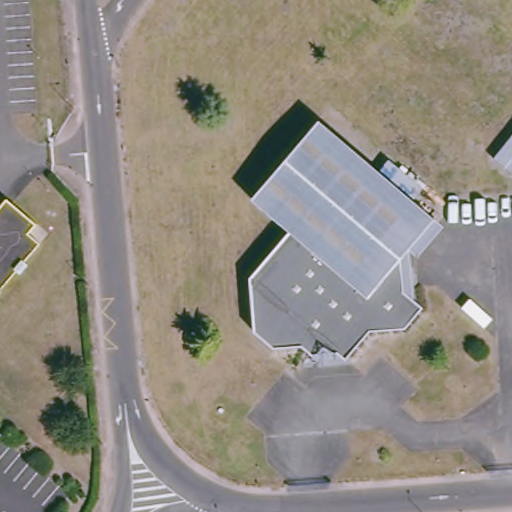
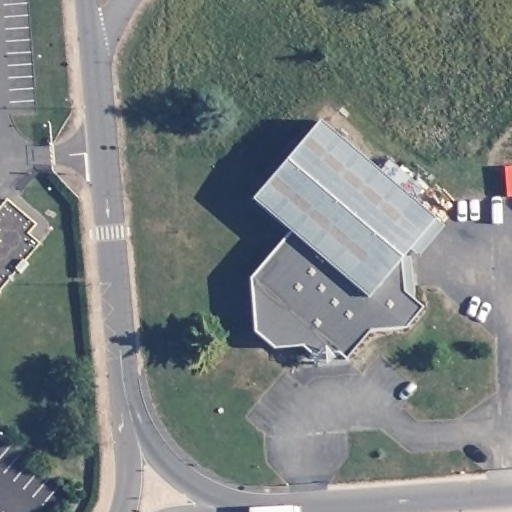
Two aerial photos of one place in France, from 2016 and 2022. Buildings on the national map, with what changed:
unchanged [(375,172),(408,201),(431,220),(398,259),(403,290),(423,310),(406,328),(375,329),(343,364),(328,353),(305,356),(294,346),(270,348),(248,332),(244,283),(286,233),(248,199),(315,122),(375,172)]
unchanged [(512,140),(512,174),(497,161),(512,140)]
unchanged [(15,195),(41,219),(32,231),(45,241),(30,259),(33,262),(25,272),(21,269),(0,294),(0,212),(15,195)]

